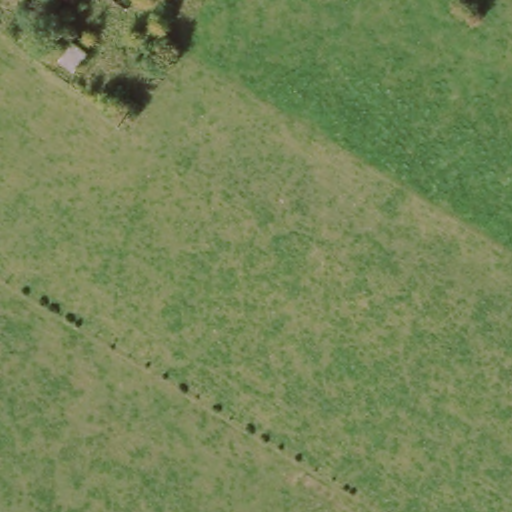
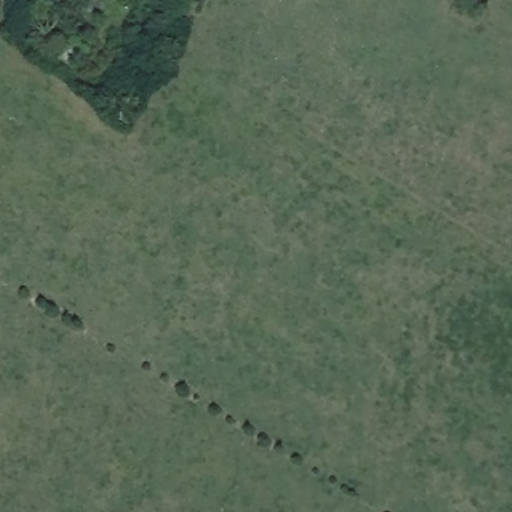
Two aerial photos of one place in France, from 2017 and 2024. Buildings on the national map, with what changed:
unchanged [(95,47),(78,74),(55,59),(75,34),(95,47)]

